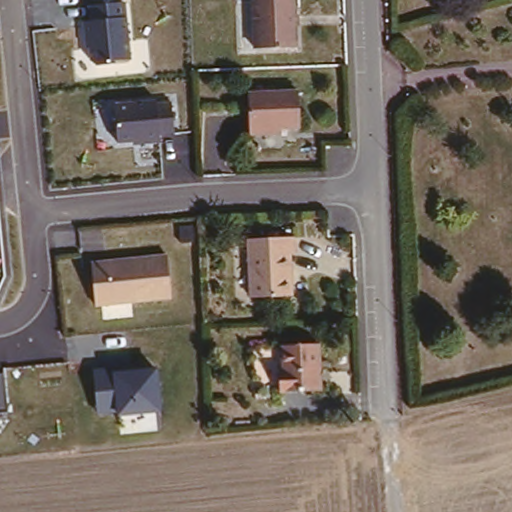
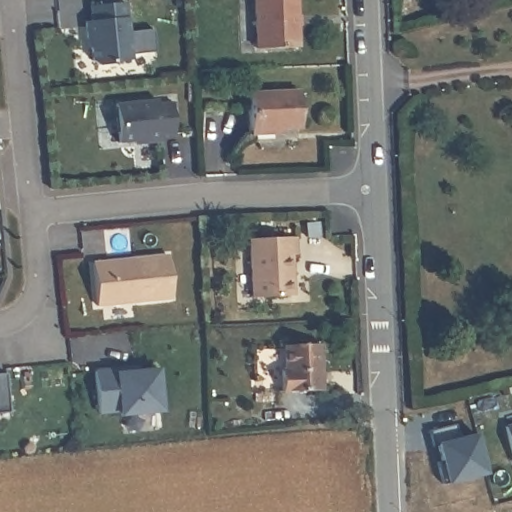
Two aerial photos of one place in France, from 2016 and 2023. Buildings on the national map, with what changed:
unchanged [(256,53),(256,0),(298,0),(299,51),(256,53)]
unchanged [(133,60),(98,65),(90,62),(85,19),(90,18),(88,8),(125,4),(133,60)]
unchanged [(300,94),(303,128),(276,128),(276,136),(255,138),(254,96),(300,94)]
unchanged [(176,136),(160,137),(160,144),(133,146),(132,141),(119,142),(115,103),(158,99),(158,104),(173,102),(176,136)]
unchanged [(302,262),(300,262),(301,295),(257,293),(253,237),(301,235),(302,262)]
unchanged [(163,255),(169,300),(94,308),(90,262),(163,255)]
unchanged [(323,396),(290,395),(288,349),(321,347),(323,396)]
unchanged [(163,411),(98,417),(94,370),(120,367),(120,371),(160,368),(163,411)]
unchanged [(8,414),(0,415),(0,371),(6,371),(8,414)]
new [(512,414),(512,422),(510,415),(512,414)]
new [(433,428),(456,425),(457,432),(477,428),(487,471),(443,481),(433,428)]

